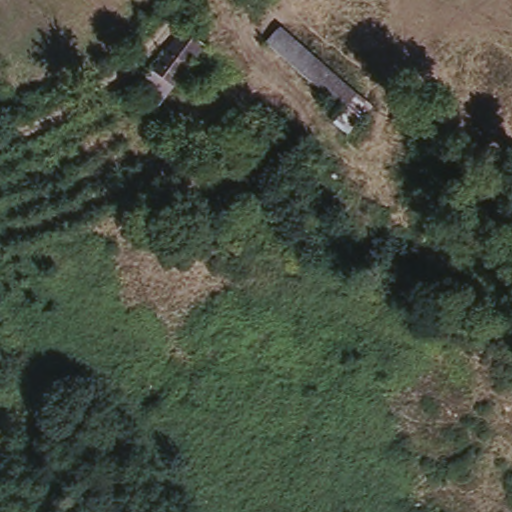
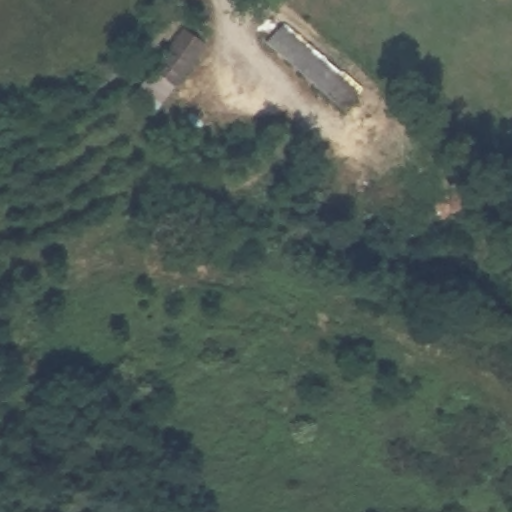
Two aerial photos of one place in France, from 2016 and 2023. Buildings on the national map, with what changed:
unchanged [(361,82),(339,110),(263,44),(284,19),(361,82)]
unchanged [(154,108),(129,84),(182,22),(210,45),(154,108)]

